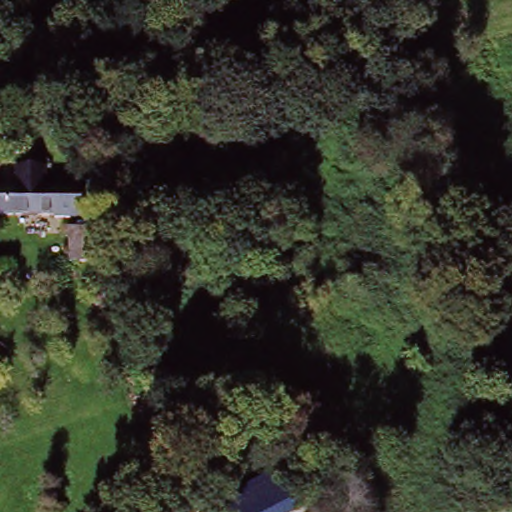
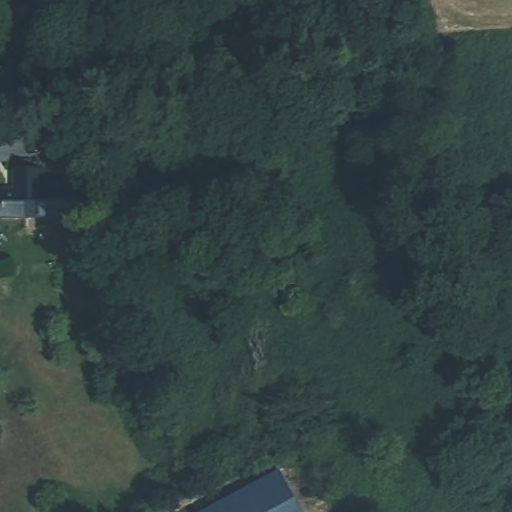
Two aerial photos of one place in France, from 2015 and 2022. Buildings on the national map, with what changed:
unchanged [(18,169),(44,168),(45,187),(62,187),(62,213),(0,214),(0,188),(18,188),(18,169)]
unchanged [(260,196),(257,189),(285,181),(287,188),(327,176),(335,205),(248,230),(240,202),(260,196)]
unchanged [(110,246),(82,255),(72,221),(99,212),(110,246)]
unchanged [(279,473),(300,512),(207,512),(279,473)]

